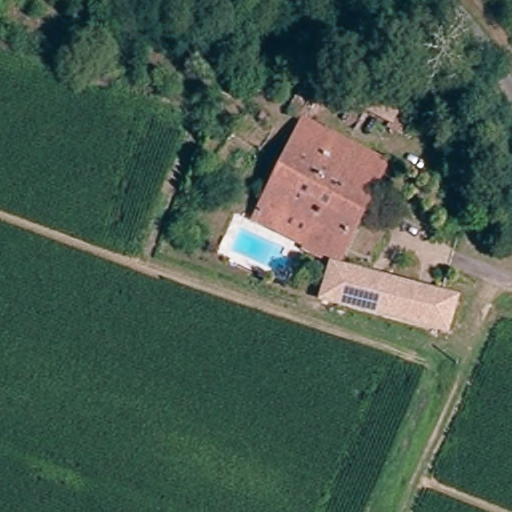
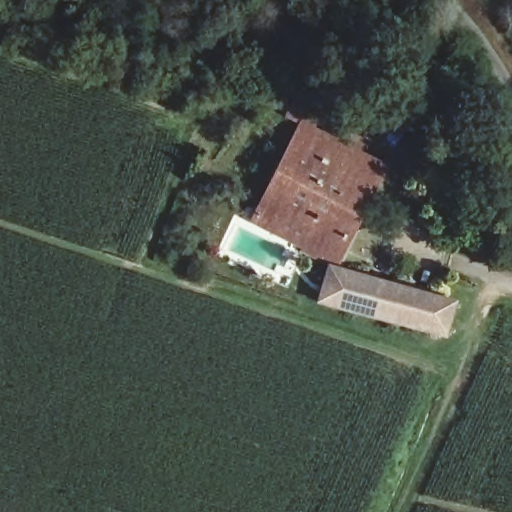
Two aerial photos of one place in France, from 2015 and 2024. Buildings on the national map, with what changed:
unchanged [(260,206),(312,104),(302,98),(312,76),(328,84),(316,106),(399,147),(388,168),(337,267),(305,251),(309,242),(255,217),(260,206)]
unchanged [(405,113),(395,130),(337,100),(345,83),(405,113)]
unchanged [(449,341),(327,310),(337,274),(458,305),(449,341)]

